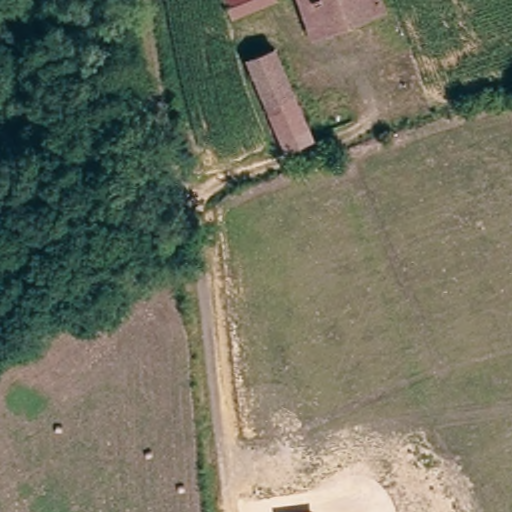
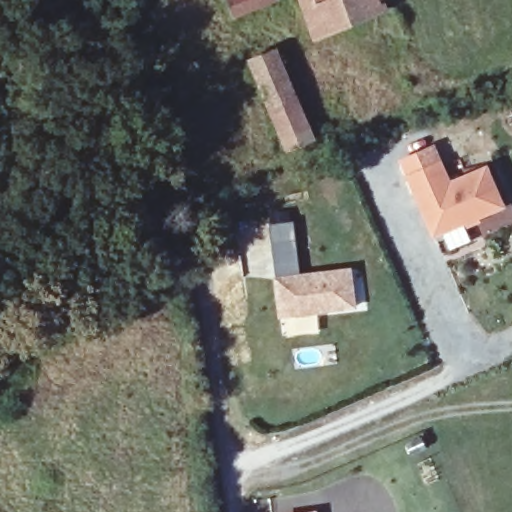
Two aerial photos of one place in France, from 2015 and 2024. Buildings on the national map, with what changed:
unchanged [(231,12),(227,0),(262,0),(231,12)]
unchanged [(398,34),(386,38),(375,8),(312,34),(300,0),(386,0),(398,34)]
unchanged [(316,141),(291,151),(255,54),(280,44),(316,141)]
new [(512,226),(485,238),(476,221),(465,227),(471,238),(448,249),(441,235),(432,239),(397,159),(434,142),(451,178),(487,162),(506,205),(511,203),(512,204),(512,226)]
new [(273,277),(276,277),(270,223),(293,221),(300,273),(351,267),(356,308),(351,309),(346,275),(273,285),(273,277)]
new [(275,309),(272,286),(346,275),(351,313),(295,321),(277,323),(275,309)]
unchanged [(317,512),(309,512),(316,511),(317,512)]

